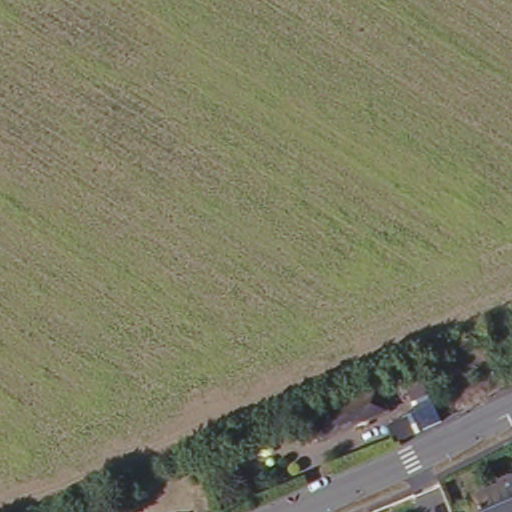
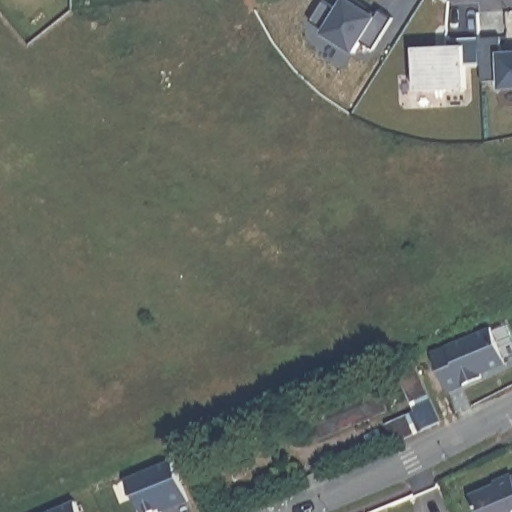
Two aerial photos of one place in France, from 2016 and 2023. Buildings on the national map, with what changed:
new [(340,12),(346,0),(355,0),(368,7),(366,12),(375,17),(379,10),(394,19),(372,52),(362,44),(354,54),(325,36),(327,32),(311,22),(323,2),(340,12)]
new [(502,34),(502,51),(512,51),(512,84),(504,84),(504,80),(481,80),(480,65),(479,36),(502,34)]
new [(480,65),(464,65),(465,86),(415,87),(413,47),(446,45),(446,37),(479,36),(480,65)]
new [(439,355),(495,328),(510,363),(454,388),(439,355)]
unchanged [(423,362),(446,416),(406,435),(396,412),(420,402),(406,369),(423,362)]
unchanged [(377,380),(387,402),(326,432),(316,406),(377,380)]
new [(172,458),(188,496),(149,512),(136,512),(125,478),(172,458)]
unchanged [(503,472),(512,468),(512,511),(510,512),(493,512),(490,503),(487,504),(479,485),(505,475),(503,472)]
new [(77,502),(81,512),(53,512),(77,502)]

